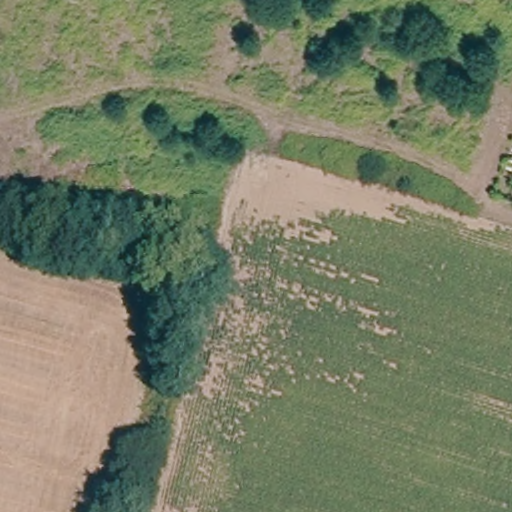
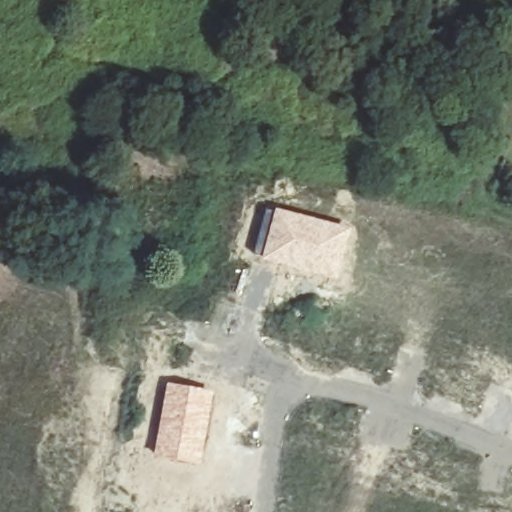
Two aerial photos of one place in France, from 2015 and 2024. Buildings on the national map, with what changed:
new [(275,208),(353,227),(339,280),(261,258),(275,208)]
new [(168,383),(215,391),(202,465),(154,456),(168,383)]

